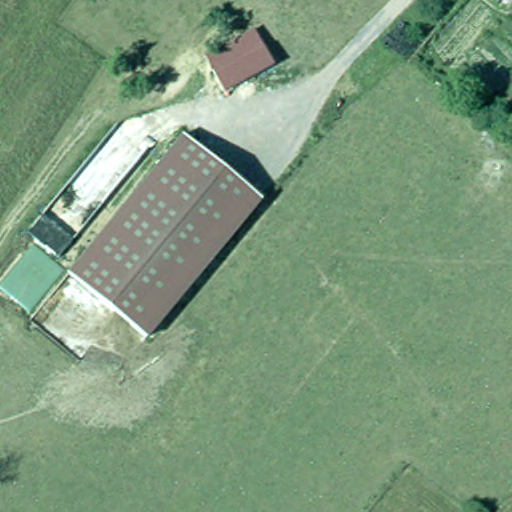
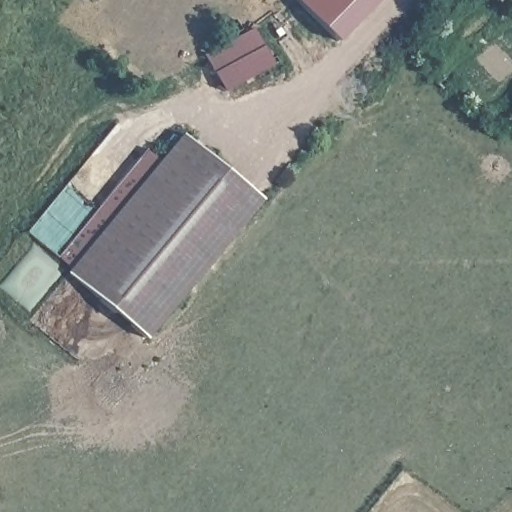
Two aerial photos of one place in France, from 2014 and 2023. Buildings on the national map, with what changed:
new [(298,0),(379,0),(339,41),(298,0)]
unchanged [(273,66),(223,91),(203,55),(254,28),(273,66)]
unchanged [(264,201),(148,341),(69,274),(183,135),(264,201)]

